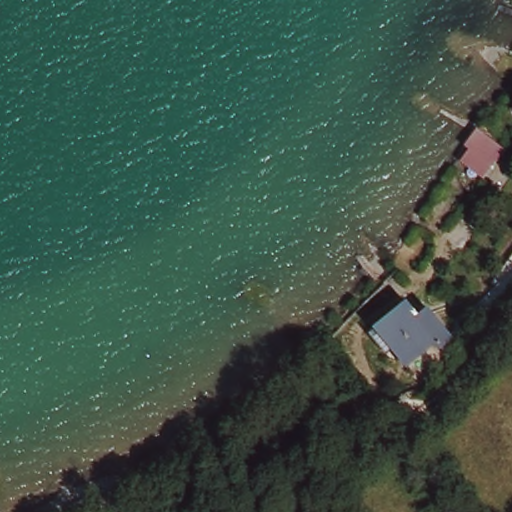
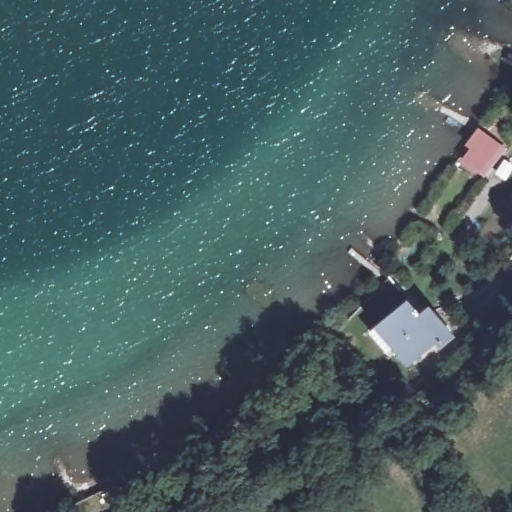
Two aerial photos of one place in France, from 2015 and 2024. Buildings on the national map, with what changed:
unchanged [(502,152),(477,178),(456,157),(464,148),(457,138),(474,126),(502,152)]
unchanged [(382,340),(407,313),(417,324),(430,311),(455,338),(440,352),(434,344),(410,368),(382,340)]

